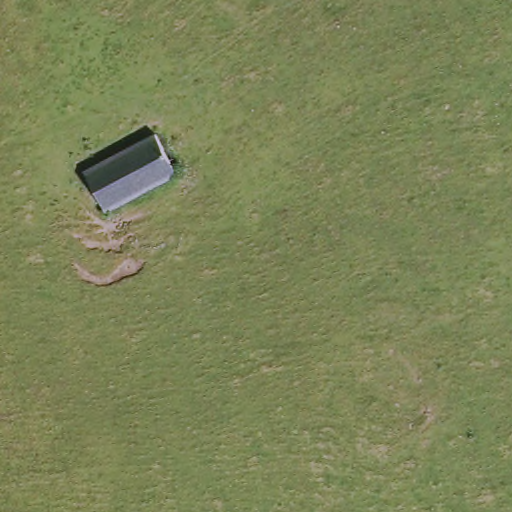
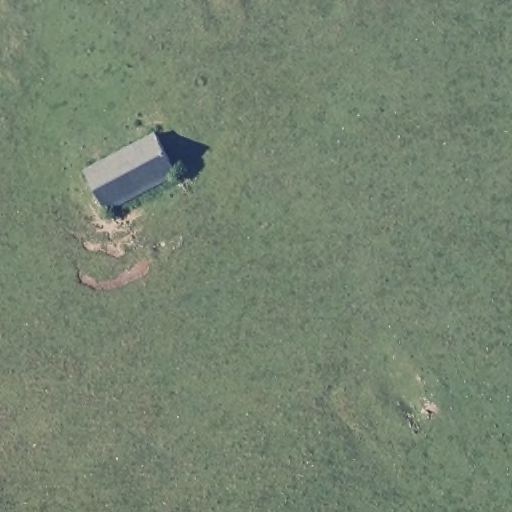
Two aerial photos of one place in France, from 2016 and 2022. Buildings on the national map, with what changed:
unchanged [(92,166),(157,131),(180,177),(109,212),(92,166)]

